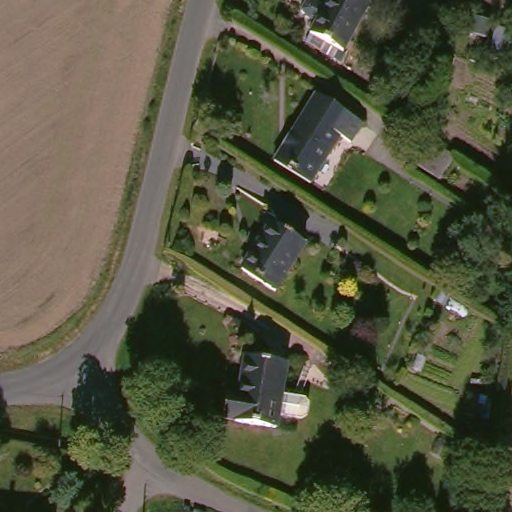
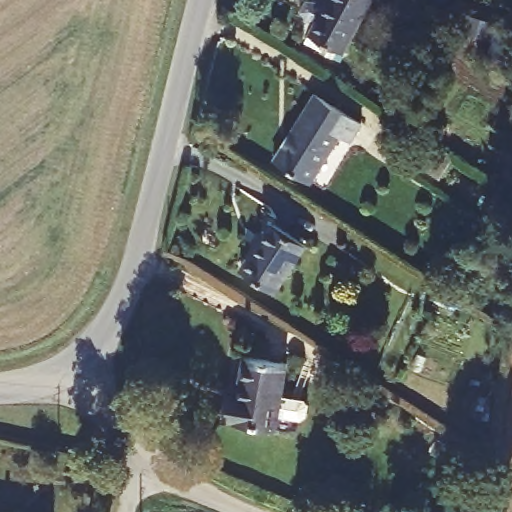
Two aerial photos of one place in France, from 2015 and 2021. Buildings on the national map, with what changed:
unchanged [(334,0),(372,0),(344,53),(316,36),(334,0)]
unchanged [(512,34),(512,70),(481,64),(489,29),(512,34)]
unchanged [(317,182),(284,161),(321,96),(366,123),(354,143),(344,137),(317,182)]
unchanged [(416,128),(438,141),(427,161),(404,147),(416,128)]
unchanged [(268,224),(302,241),(278,290),(244,273),(268,224)]
unchanged [(224,387),(239,388),(243,361),(291,367),(282,428),(221,417),(224,387)]

